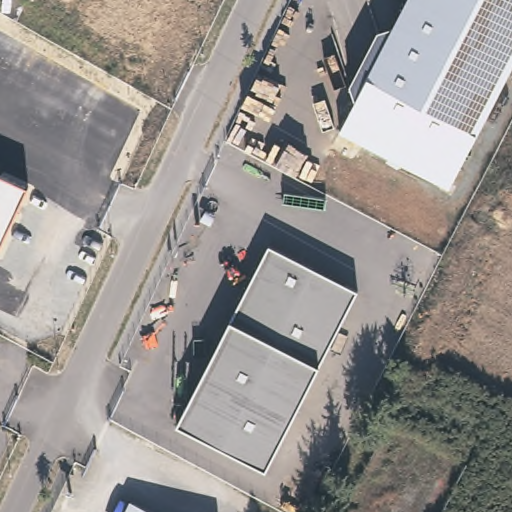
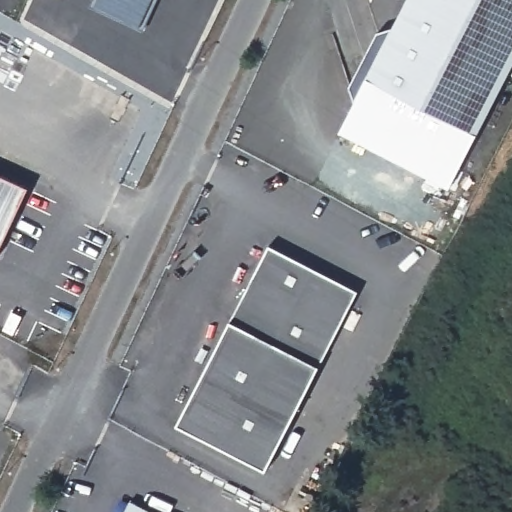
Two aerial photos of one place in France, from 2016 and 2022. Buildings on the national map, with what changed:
new [(152,0),(139,26),(94,5),(96,0),(152,0)]
unchanged [(393,28),(408,0),(512,0),(512,65),(448,189),(340,132),(355,102),(350,86),(363,60),(377,33),(393,28)]
unchanged [(29,185),(0,246),(0,172),(29,185)]
unchanged [(357,287),(264,467),(175,422),(268,241),(357,287)]
unchanged [(120,500),(126,503),(129,498),(157,512),(113,512),(120,500)]

